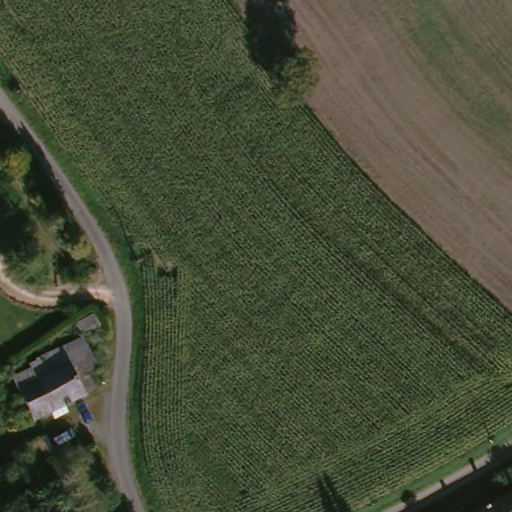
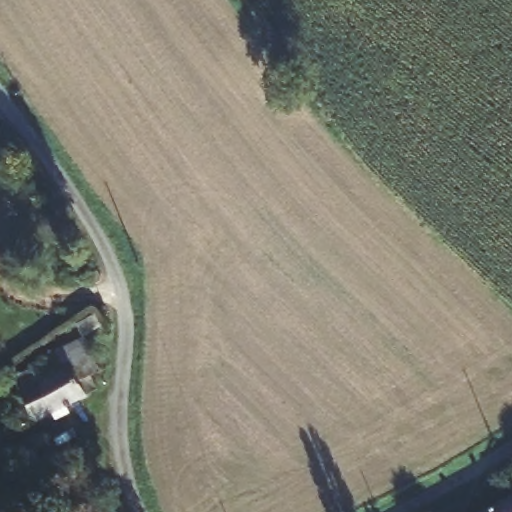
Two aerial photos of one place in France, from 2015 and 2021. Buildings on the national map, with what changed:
unchanged [(84,372),(90,386),(44,412),(30,418),(6,376),(34,360),(32,356),(76,332),(95,365),(84,372)]
unchanged [(49,419),(57,414),(63,424),(72,418),(77,428),(61,438),(40,452),(28,433),(49,419)]
unchanged [(512,497),(512,512),(486,512),(512,497)]

